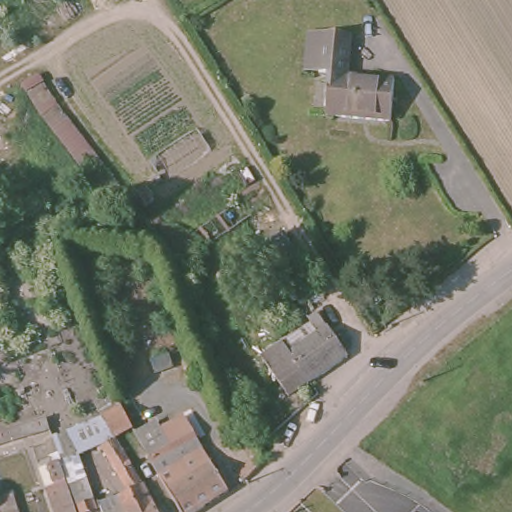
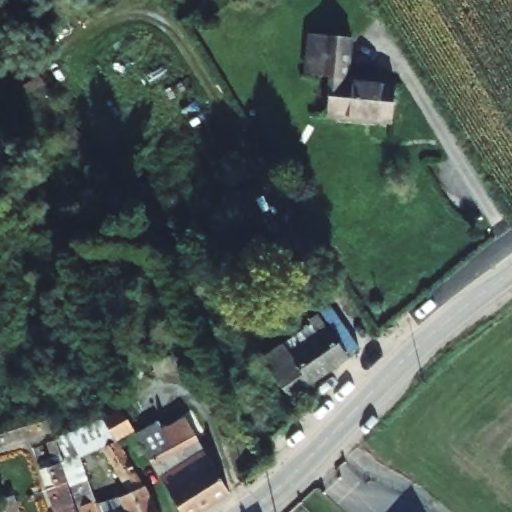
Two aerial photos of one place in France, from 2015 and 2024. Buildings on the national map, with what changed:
unchanged [(331,78),(318,76),(323,34),(350,35),(346,79),(393,81),(390,126),(326,119),(331,78)]
unchanged [(131,199),(113,211),(23,85),(40,74),(131,199)]
unchanged [(255,190),(268,205),(247,223),(254,232),(203,263),(184,240),(255,190)]
unchanged [(262,249),(284,234),(319,293),(299,308),(262,249)]
unchanged [(335,370),(306,391),(284,359),(314,338),(305,326),(316,320),(345,363),(335,370)]
unchanged [(281,408),(257,376),(284,359),(306,391),(281,408)]
unchanged [(152,368),(171,362),(173,375),(155,381),(152,368)]
unchanged [(77,497),(72,482),(58,435),(125,407),(139,434),(130,439),(119,446),(157,512),(124,512),(130,509),(126,502),(136,497),(102,452),(83,459),(103,512),(82,512),(77,497)]
unchanged [(214,512),(181,512),(143,441),(171,424),(184,416),(234,500),(214,512)]
unchanged [(0,450),(0,433),(45,419),(50,432),(0,450)]
unchanged [(264,471),(244,491),(237,483),(257,464),(264,471)]
unchanged [(48,489),(72,482),(77,497),(82,512),(54,512),(48,489)]
unchanged [(2,508),(3,512),(0,512),(0,509),(2,508)]

